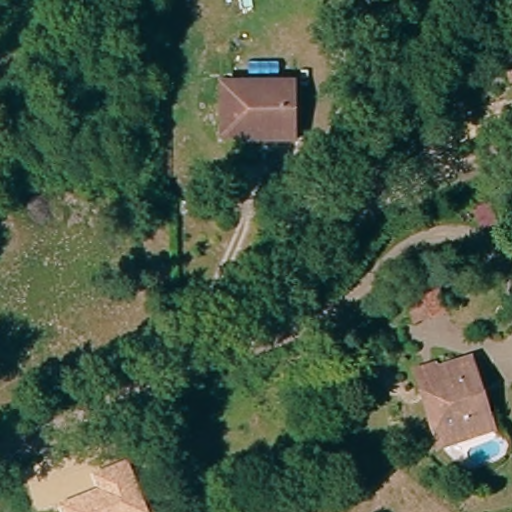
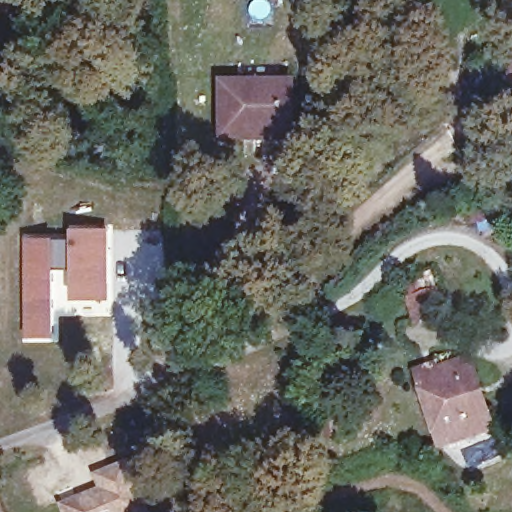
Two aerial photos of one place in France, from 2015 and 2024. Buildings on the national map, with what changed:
unchanged [(237,148),(237,140),(218,140),(220,85),(290,84),(289,131),(289,147),(237,148)]
new [(54,237),(73,237),(73,228),(109,228),(109,299),(73,299),(72,267),(55,268),(55,340),(25,339),(25,238),(54,237)]
new [(402,306),(437,287),(447,306),(413,325),(402,306)]
demolished [(421,287),(427,312),(410,317),(403,292),(421,287)]
unchanged [(471,376),(483,412),(489,433),(441,448),(418,373),(466,360),(471,376)]
unchanged [(98,489),(92,475),(127,462),(147,512),(63,512),(60,505),(98,489)]

